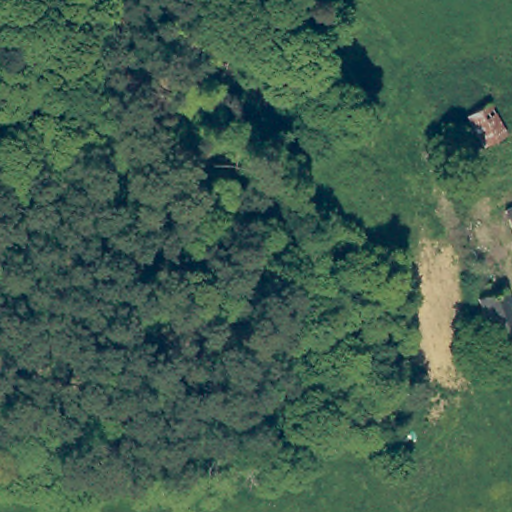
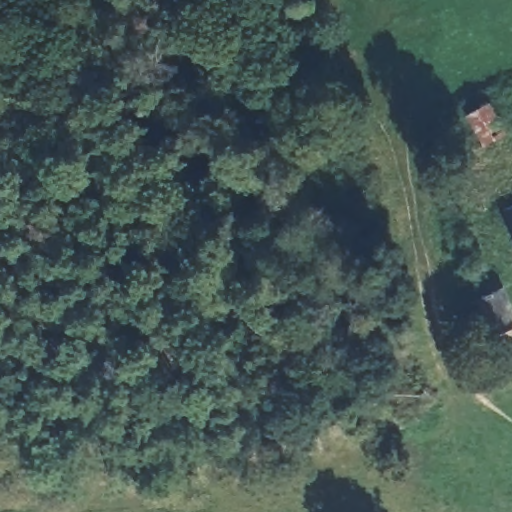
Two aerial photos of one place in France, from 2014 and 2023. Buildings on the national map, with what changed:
unchanged [(476,133),(466,115),(488,103),(505,133),(483,145),(476,133)]
unchanged [(428,146),(444,141),(451,162),(436,166),(428,146)]
unchanged [(512,232),(504,211),(512,208),(512,232)]
unchanged [(483,295),(481,291),(482,286),(486,283),(491,284),(495,288),(496,290),(503,288),(512,311),(512,326),(492,333),(489,334),(476,298),(483,295)]

